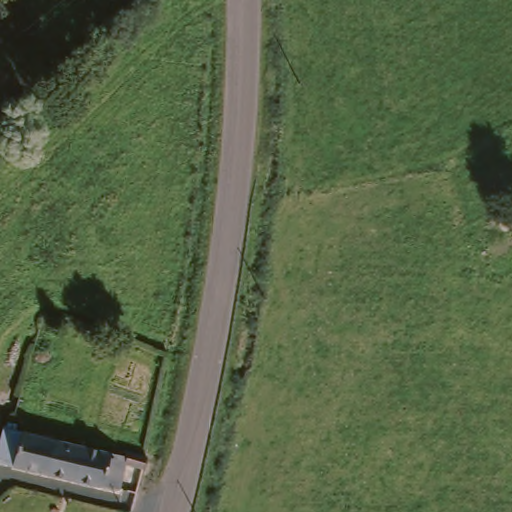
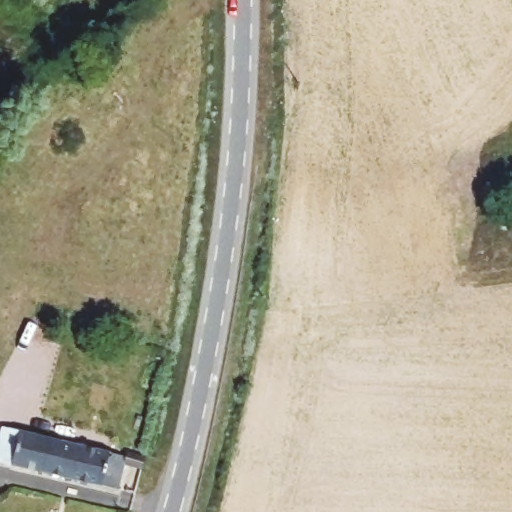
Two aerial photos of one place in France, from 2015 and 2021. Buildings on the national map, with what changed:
unchanged [(115,465),(116,459),(136,464),(133,477),(114,475),(110,497),(0,470),(0,437),(115,465)]

